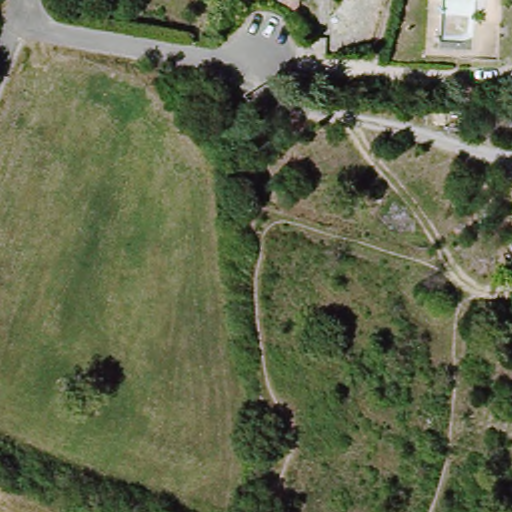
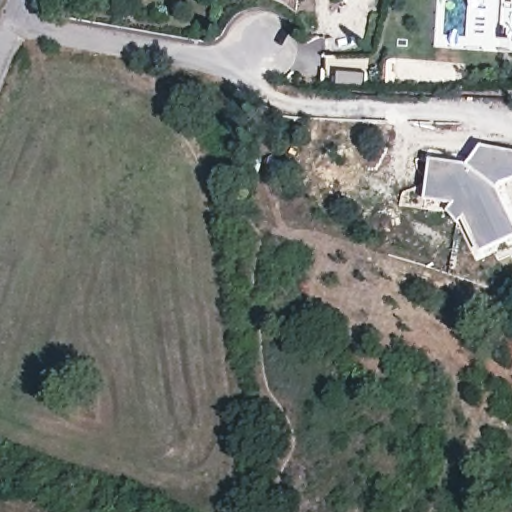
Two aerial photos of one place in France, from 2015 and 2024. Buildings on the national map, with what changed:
new [(470,167),(484,149),(512,154),(512,182),(505,184),(498,190),(512,218),(512,240),(484,254),(469,218),(462,224),(450,214),(459,204),(427,202),(432,163),(470,167)]

